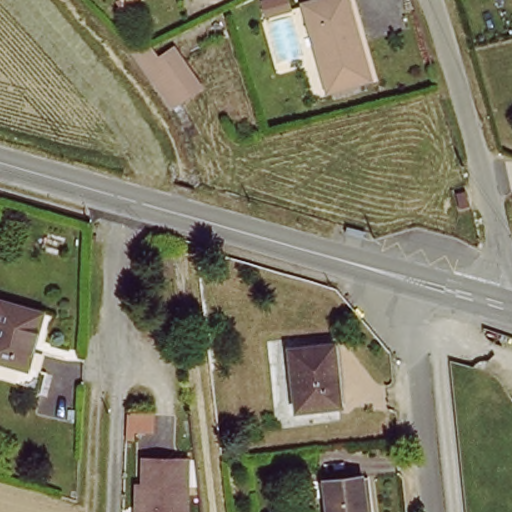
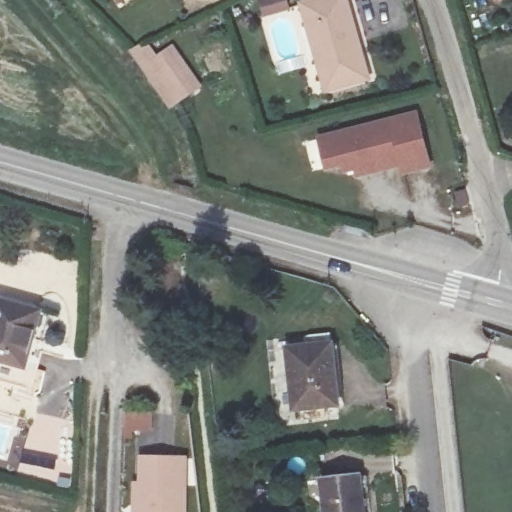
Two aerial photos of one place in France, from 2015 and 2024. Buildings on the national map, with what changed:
unchanged [(370,77),(326,90),(300,4),(313,0),(344,0),(370,77)]
unchanged [(196,82),(167,102),(146,69),(177,46),(196,82)]
new [(422,120),(435,173),(409,179),(407,170),(363,181),(361,173),(351,175),(349,168),(332,172),(325,143),(422,120)]
unchanged [(476,217),(463,220),(458,204),(472,200),(476,217)]
unchanged [(24,348),(39,352),(35,368),(0,359),(0,302),(34,312),(24,348)]
unchanged [(340,342),(347,399),(301,404),(294,347),(340,342)]
unchanged [(126,416),(156,419),(155,433),(135,432),(135,439),(125,438),(126,416)]
unchanged [(179,490),(186,490),(185,512),(140,512),(144,463),(179,466),(179,490)]
unchanged [(369,512),(331,512),(326,480),(363,475),(369,512)]

